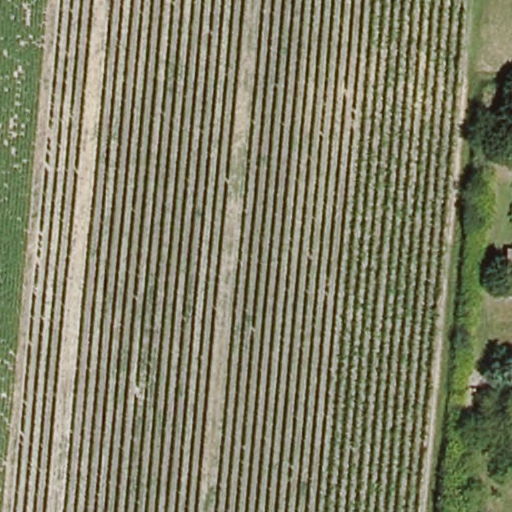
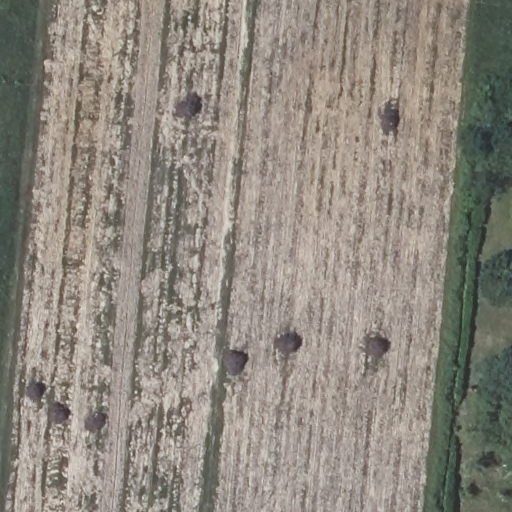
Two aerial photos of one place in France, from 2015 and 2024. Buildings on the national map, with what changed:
unchanged [(512,243),(512,276),(485,274),(486,241),(512,243)]

